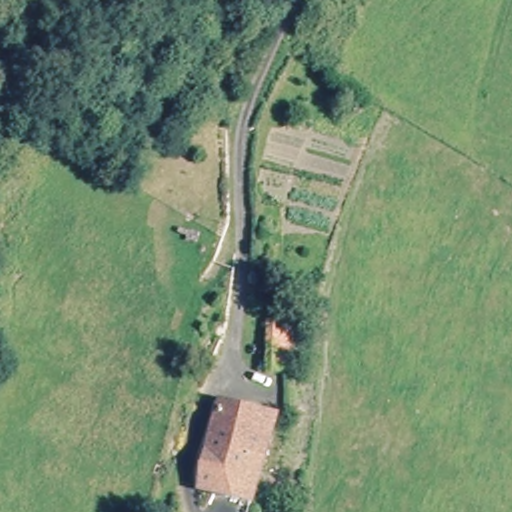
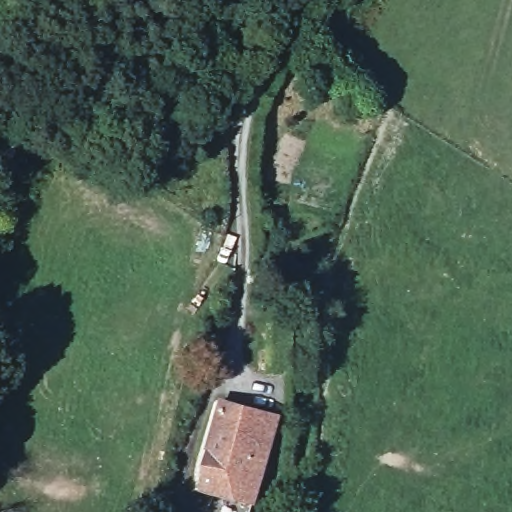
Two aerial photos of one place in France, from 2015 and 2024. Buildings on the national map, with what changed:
unchanged [(278,328),(301,338),(287,372),(263,361),(278,328)]
unchanged [(199,488),(202,469),(228,405),(282,427),(247,507),(205,489),(199,488)]

